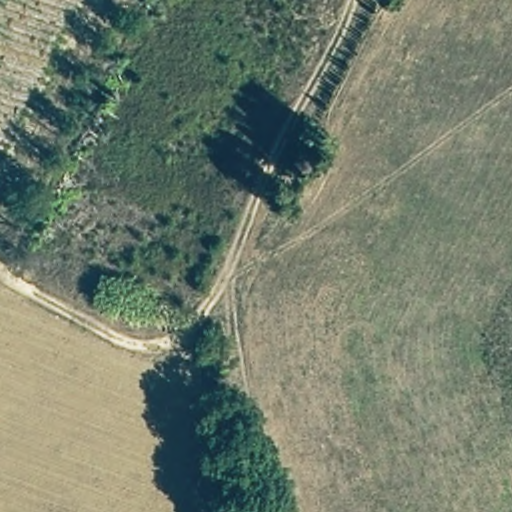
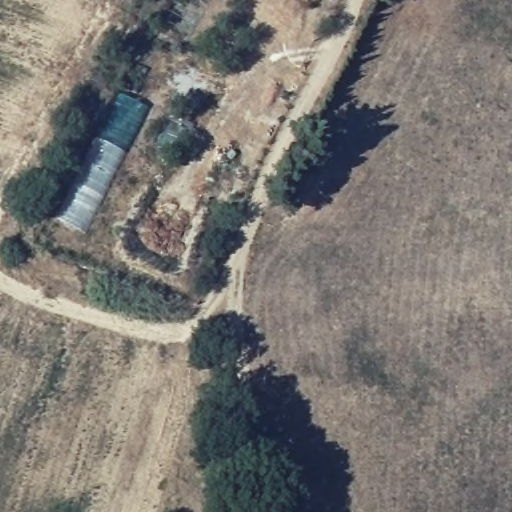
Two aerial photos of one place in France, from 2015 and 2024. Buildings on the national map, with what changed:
new [(56,218),(117,95),(146,109),(84,234),(56,218)]

